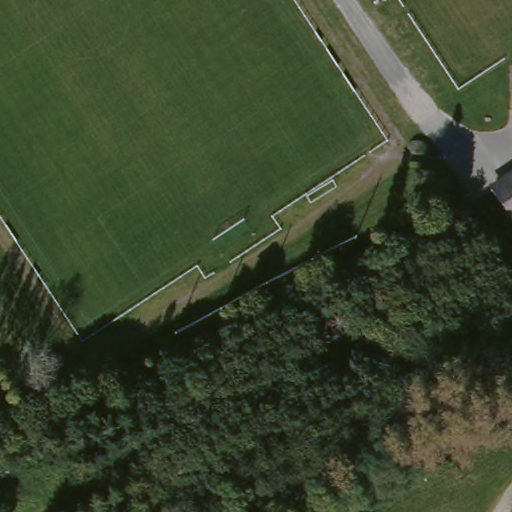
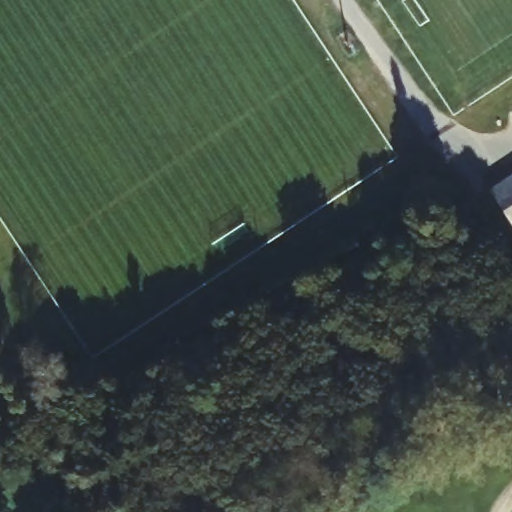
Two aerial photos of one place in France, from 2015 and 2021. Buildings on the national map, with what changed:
unchanged [(508,193),(501,182),(512,176),(512,221),(500,199),(508,193)]

